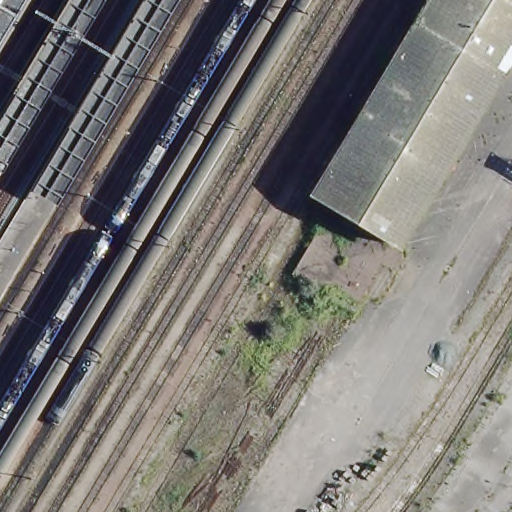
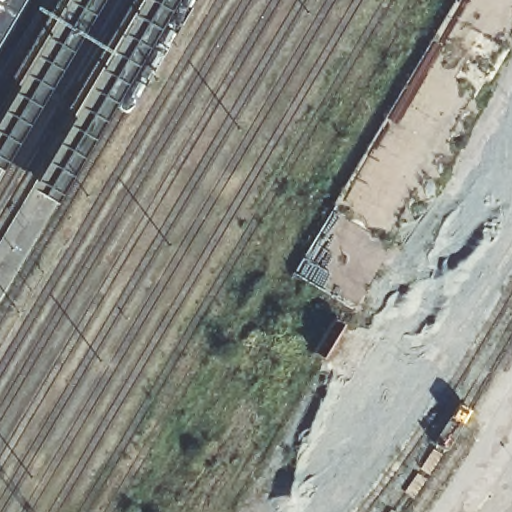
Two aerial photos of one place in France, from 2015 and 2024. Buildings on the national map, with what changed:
unchanged [(0,0),(17,0),(0,28),(0,0)]
unchanged [(0,107),(63,0),(98,0),(0,165),(0,107)]
unchanged [(28,184),(137,0),(175,0),(56,198),(28,184)]
demolished [(464,0),(507,29),(390,235),(312,190),(425,0),(464,0)]
demolished [(464,0),(512,0),(512,21),(507,29),(464,0)]

